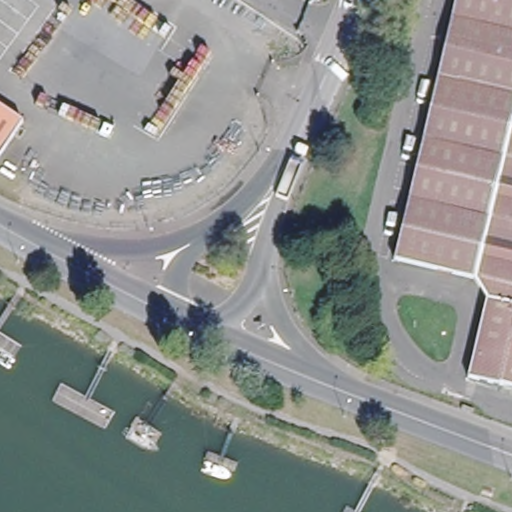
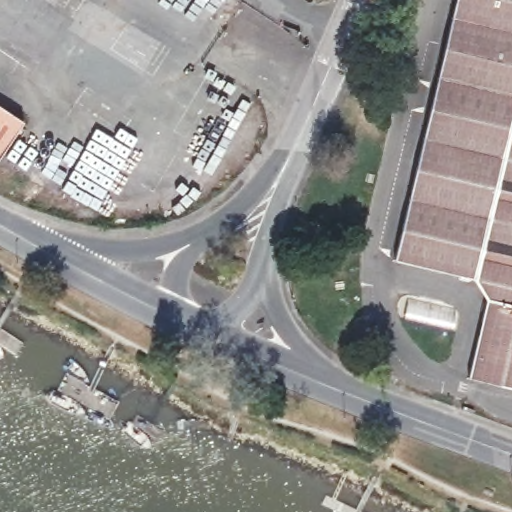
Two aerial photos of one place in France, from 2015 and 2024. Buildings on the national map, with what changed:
unchanged [(473,382),(490,304),(477,285),(396,267),(453,0),(512,0),(512,390),(473,382)]
unchanged [(0,160),(0,101),(27,120),(0,160)]

